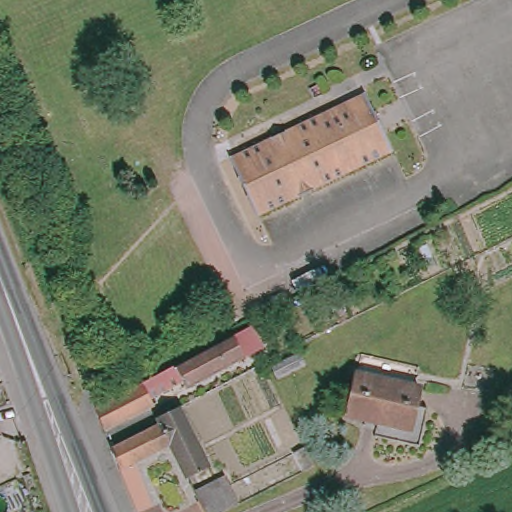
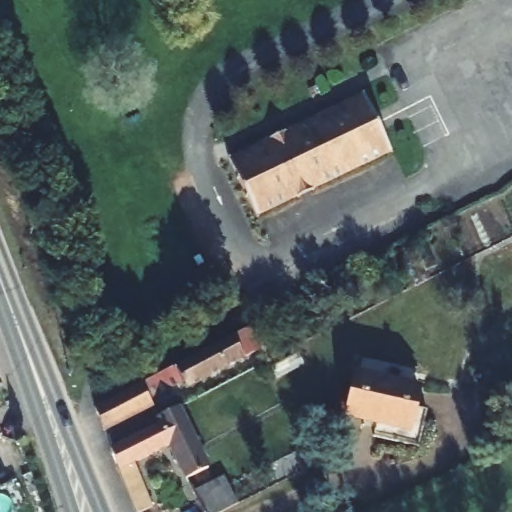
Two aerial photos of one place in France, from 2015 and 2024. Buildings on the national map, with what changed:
unchanged [(368,98),(397,159),(261,224),(232,164),(368,98)]
unchanged [(183,390),(178,379),(143,397),(148,408),(97,434),(88,411),(173,368),(173,369),(233,337),(243,330),(248,327),(260,349),(253,353),(183,390)]
unchanged [(304,361),(311,373),(281,388),(276,376),(304,361)]
unchanged [(345,421),(354,379),(418,393),(412,419),(408,434),(389,430),(345,421)]
unchanged [(189,483),(173,450),(176,448),(166,426),(163,428),(159,422),(181,411),(211,473),(189,483)]
unchanged [(140,467),(157,510),(154,512),(139,512),(114,451),(163,428),(166,426),(176,448),(173,450),(140,467)]
unchanged [(196,503),(228,488),(239,512),(200,512),(196,503)]

